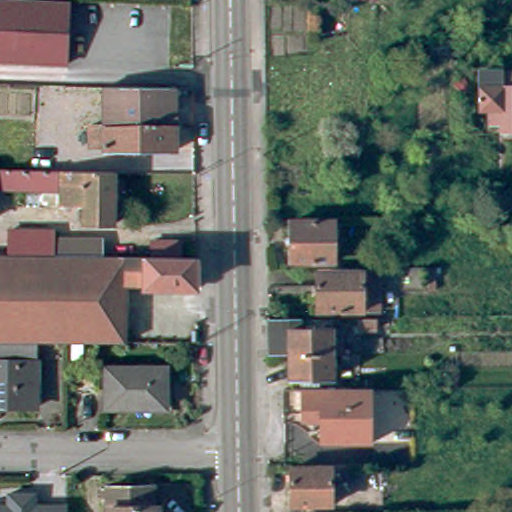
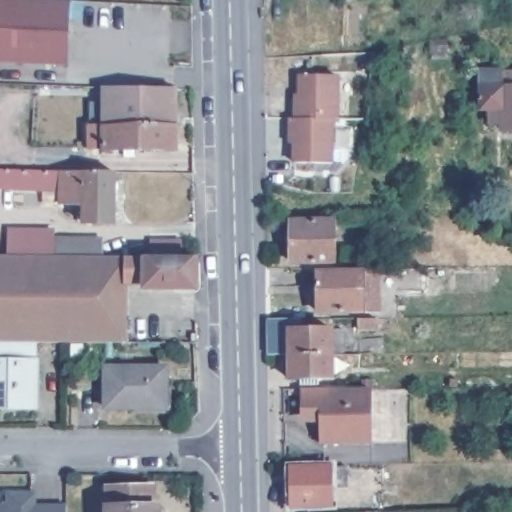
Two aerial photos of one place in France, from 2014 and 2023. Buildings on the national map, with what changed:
unchanged [(0,63),(0,3),(66,6),(64,66),(0,63)]
new [(340,77),(339,121),(335,121),(334,162),(292,162),(292,145),(287,145),(287,119),(293,120),(292,97),(296,97),(297,75),(340,77)]
unchanged [(482,125),(482,113),(472,113),(472,75),(512,75),(512,134),(494,135),(494,125),(482,125)]
demolished [(67,110),(50,109),(51,83),(58,83),(68,84),(67,110)]
unchanged [(105,150),(105,147),(79,147),(79,124),(94,124),(94,106),(94,85),(168,85),(177,85),(177,149),(105,150)]
unchanged [(55,174),(97,175),(110,175),(110,227),(79,227),(80,207),(40,206),(40,194),(0,193),(0,172),(19,172),(55,174)]
unchanged [(331,263),(287,265),(285,223),(331,222),(331,263)]
unchanged [(5,233),(50,234),(51,241),(99,241),(98,260),(5,258),(5,233)]
unchanged [(5,258),(98,260),(129,260),(135,260),(145,260),(145,245),(177,246),(177,261),(191,261),(192,292),(140,292),(140,288),(122,287),(120,345),(111,345),(62,345),(60,345),(33,345),(0,345),(0,258),(5,258)]
unchanged [(359,287),(377,287),(378,301),(369,302),(369,308),(358,308),(358,314),(314,314),(314,271),(358,271),(359,287)]
unchanged [(270,352),(269,316),(270,316),(302,316),(302,327),(334,327),(334,351),(289,351),(270,352)]
unchanged [(374,331),(355,332),(355,320),(374,320),(374,331)]
unchanged [(12,411),(12,405),(0,405),(0,345),(33,345),(32,411),(12,411)]
unchanged [(335,375),(320,376),(320,381),(302,382),(302,375),(290,376),(289,351),(334,351),(335,375)]
unchanged [(169,365),(169,406),(106,406),(106,365),(169,365)]
unchanged [(324,442),(323,411),(304,411),(304,387),(323,386),(370,386),(372,441),(324,442)]
unchanged [(345,463),(345,484),(329,485),(329,501),(287,502),(287,465),(345,463)]
unchanged [(102,496),(95,496),(95,485),(102,485),(102,484),(150,483),(152,500),(154,500),(154,512),(102,512),(102,496)]
new [(66,512),(0,512),(0,504),(7,504),(6,492),(36,492),(37,505),(65,504),(66,512)]
unchanged [(297,511),(332,511),(333,512),(297,512),(297,511)]

